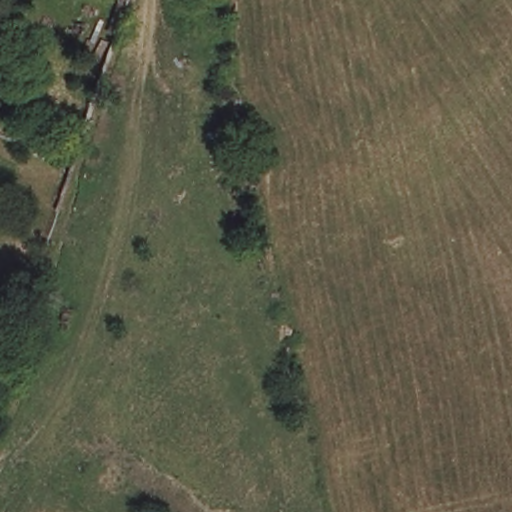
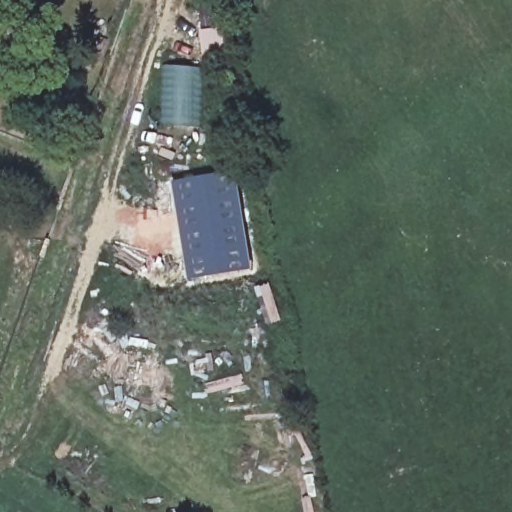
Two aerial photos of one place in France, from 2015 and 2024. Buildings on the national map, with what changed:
new [(226,26),(228,54),(203,57),(200,30),(226,26)]
new [(163,65),(206,69),(202,125),(160,122),(163,65)]
new [(238,172),(253,270),(188,280),(172,181),(238,172)]

